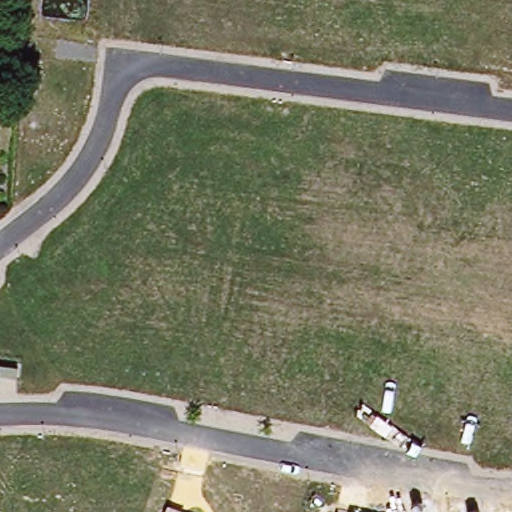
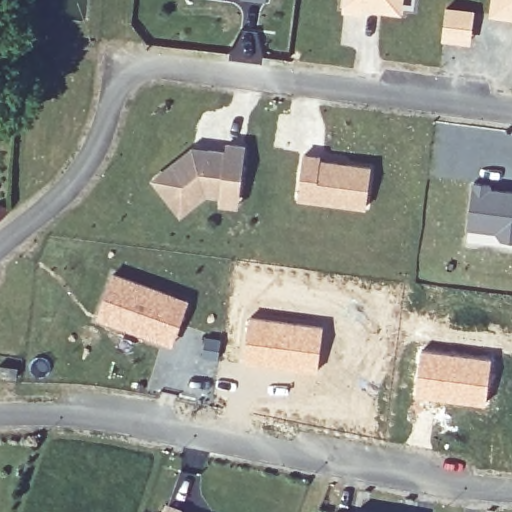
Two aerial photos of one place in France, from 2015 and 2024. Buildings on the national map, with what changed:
new [(342,7),(343,0),(403,0),(401,15),(342,7)]
unchanged [(490,0),(512,0),(512,18),(488,15),(490,0)]
new [(447,6),(474,10),(470,39),(443,36),(447,6)]
new [(239,207),(219,204),(220,195),(206,195),(181,214),(152,177),(195,145),(224,149),(226,141),(245,144),(239,207)]
new [(302,157),(320,159),(319,163),(370,170),(365,209),(296,200),(302,157)]
unchanged [(493,186),(512,188),(512,241),(500,239),(495,231),(465,229),(470,180),(493,183),(493,186)]
new [(114,272),(188,299),(171,345),(97,318),(114,272)]
new [(250,315),(325,323),(317,372),(244,360),(250,315)]
new [(420,348),(492,356),(486,405),(415,395),(420,348)]
unchanged [(166,503),(183,506),(182,512),(163,512),(166,503)]
unchanged [(334,511),(337,512),(334,512),(334,511)]

